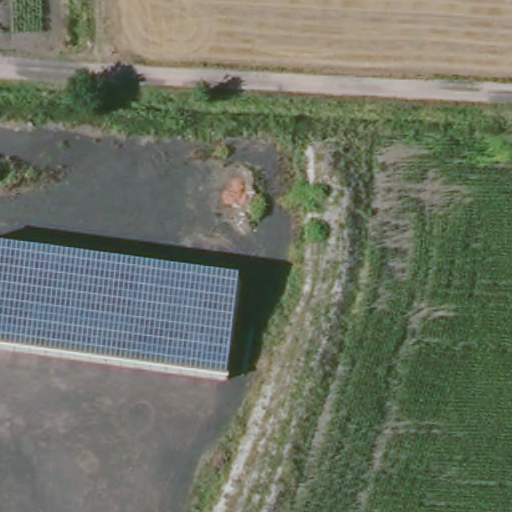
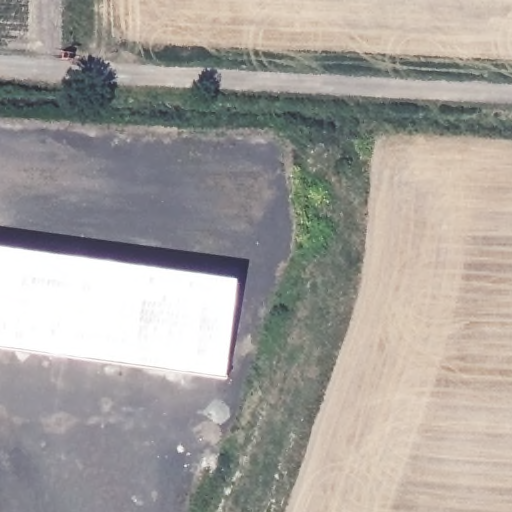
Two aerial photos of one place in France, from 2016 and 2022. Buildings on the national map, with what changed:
unchanged [(225,376),(0,347),(0,246),(238,280),(225,376)]

